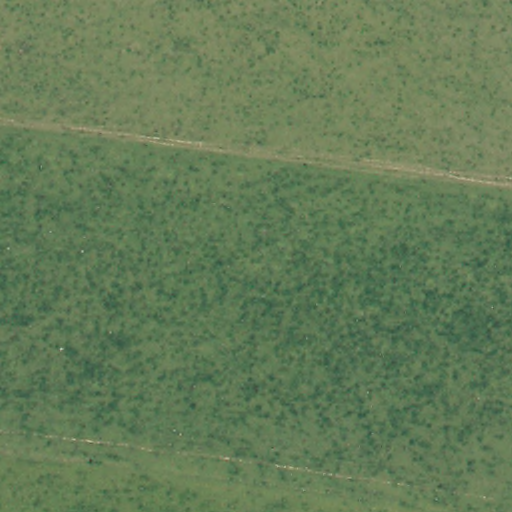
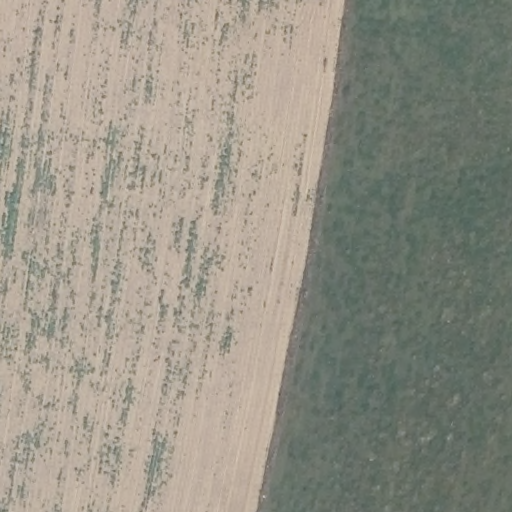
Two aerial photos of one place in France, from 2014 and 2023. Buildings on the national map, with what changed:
[]

